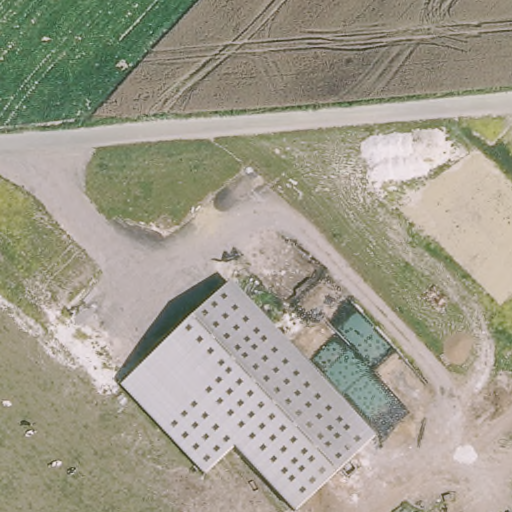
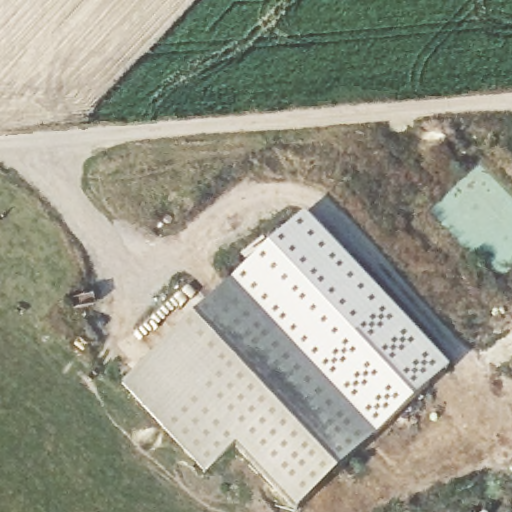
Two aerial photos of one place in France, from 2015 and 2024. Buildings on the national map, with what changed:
new [(230,282),(303,212),(447,368),(375,436),(230,282)]
unchanged [(375,436),(298,512),(237,448),(206,476),(122,387),(230,282),(375,436)]

